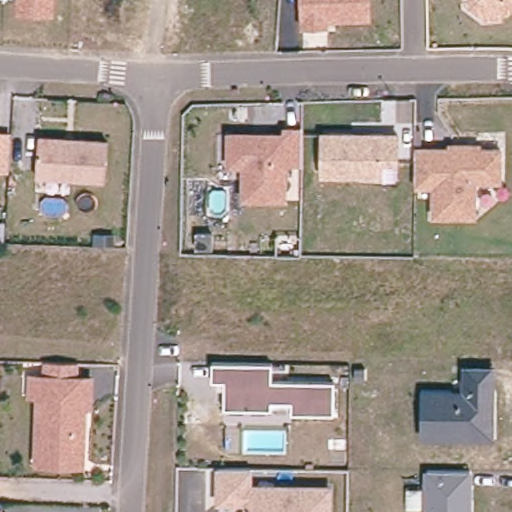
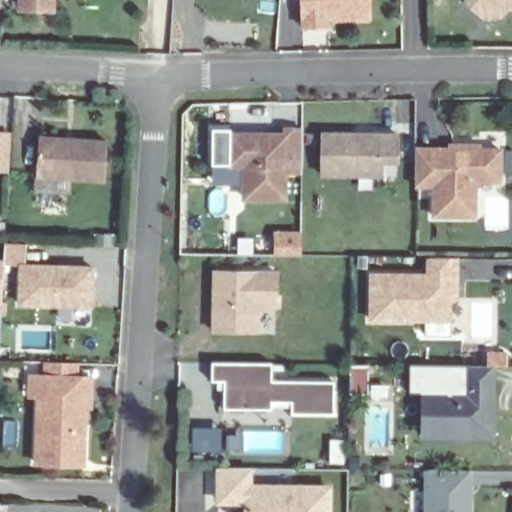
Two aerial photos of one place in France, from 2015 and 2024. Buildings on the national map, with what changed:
unchanged [(55,11),(17,12),(17,0),(56,0),(55,11)]
unchanged [(320,27),(304,28),(303,0),(370,0),(371,18),(328,20),(329,27),(320,27)]
unchanged [(481,9),(478,10),(468,1),(468,0),(512,0),(512,7),(497,8),(498,15),(481,16),(481,9)]
unchanged [(9,173),(0,173),(0,131),(11,132),(9,173)]
unchanged [(299,164),(283,164),(282,166),(282,200),(241,199),(241,166),(226,166),(226,136),(250,136),(262,136),(282,137),(282,131),(299,131),(299,164)]
unchanged [(320,131),(398,133),(399,163),(383,164),(382,180),(320,177),(320,131)]
unchanged [(40,137),(109,141),(107,180),(38,176),(40,137)]
unchanged [(454,144),(472,144),(481,144),(481,148),(502,148),(502,174),(495,180),(477,180),(477,216),(435,215),(435,186),(416,186),(416,148),(451,149),(454,144)]
unchanged [(303,235),(303,255),(278,255),(278,235),(303,235)]
new [(4,259),(4,243),(27,245),(26,263),(95,266),(94,309),(17,307),(18,266),(3,265),(0,304),(0,259),(4,259)]
new [(452,298),(452,320),(373,319),(373,274),(430,275),(430,257),(458,257),(458,288),(458,298),(452,298)]
new [(216,293),(217,271),(279,272),(278,307),(258,306),(258,332),(216,331),(216,301),(216,293)]
unchanged [(78,363),(78,378),(93,378),(92,399),(92,404),(87,404),(85,465),(38,463),(41,394),(30,393),(31,376),(47,377),(48,362),(73,362),(78,363)]
unchanged [(269,380),(331,381),(331,413),(288,413),(289,402),(269,402),(269,409),(221,409),(221,388),(215,388),(215,381),(209,381),(209,362),(269,363),(269,380)]
unchanged [(422,391),(461,391),(462,366),(495,366),(494,440),(420,438),(422,391)]
unchanged [(220,500),(221,467),(251,467),(250,486),(330,487),(330,512),(249,512),(249,501),(220,500)]
unchanged [(406,509),(406,487),(423,487),(423,472),(471,472),(472,512),(423,512),(423,508),(406,509)]

